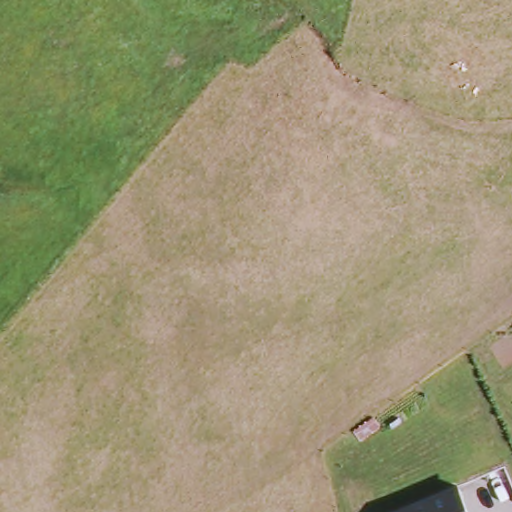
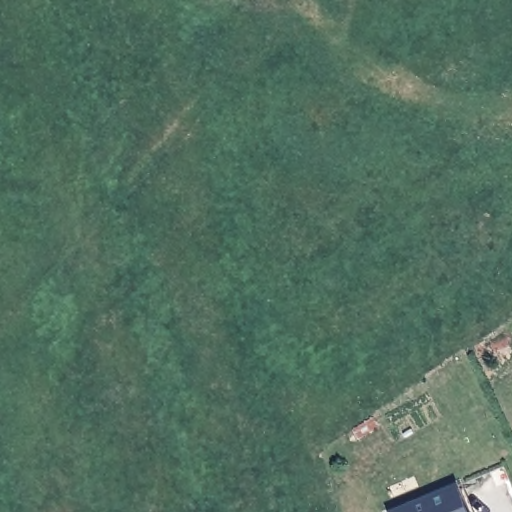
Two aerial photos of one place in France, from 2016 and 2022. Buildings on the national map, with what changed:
unchanged [(393,512),(391,507),(459,481),(471,512),(393,512)]

